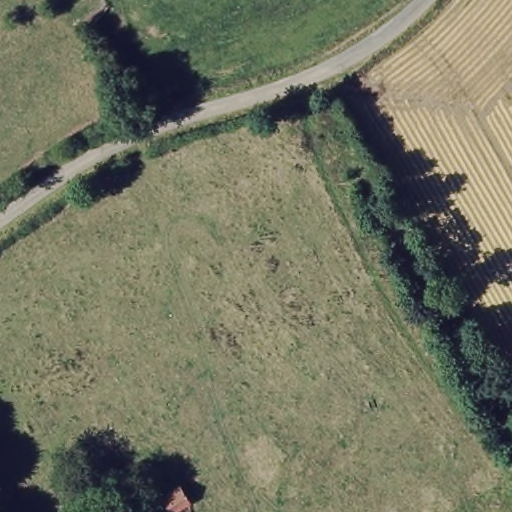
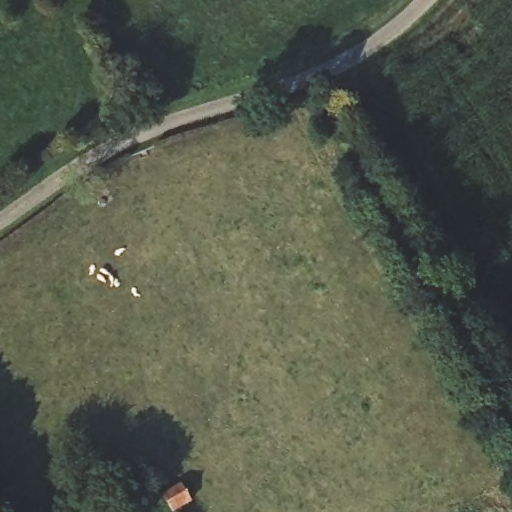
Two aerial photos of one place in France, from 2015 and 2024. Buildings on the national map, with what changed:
unchanged [(159,494),(181,481),(194,505),(178,512),(168,512),(159,494)]

